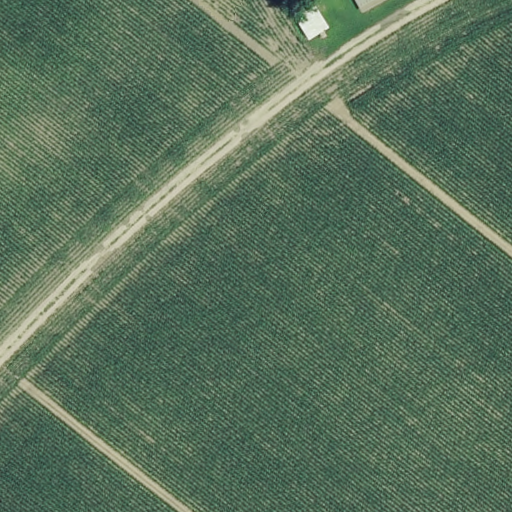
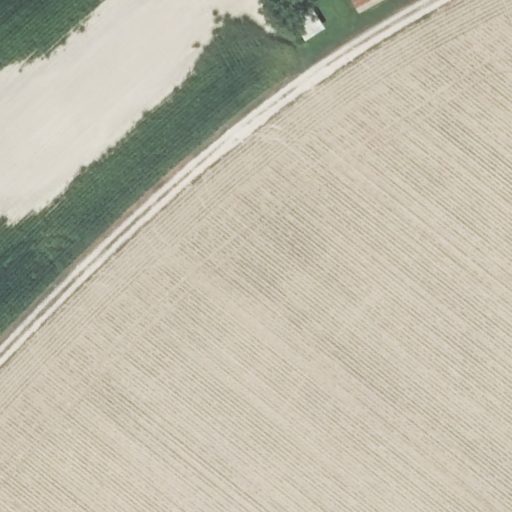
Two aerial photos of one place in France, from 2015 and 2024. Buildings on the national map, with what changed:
unchanged [(346,0),(380,0),(354,15),(346,0)]

